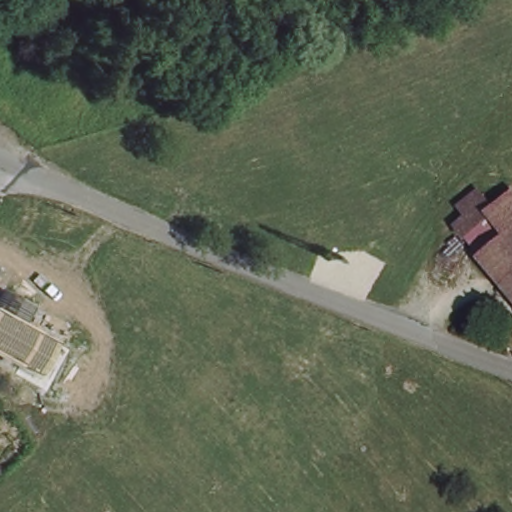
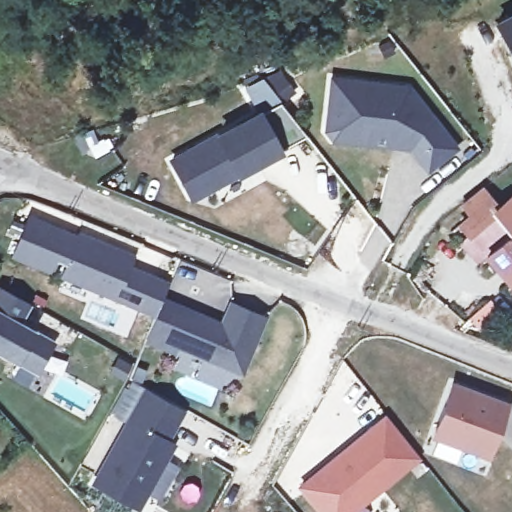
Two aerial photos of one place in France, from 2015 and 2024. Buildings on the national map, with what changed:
new [(512,15),(512,52),(496,24),(512,15)]
new [(409,150),(330,141),(322,131),(329,77),(408,84),(456,148),(426,171),(409,150)]
new [(279,149),(281,153),(236,177),(190,201),(167,160),(216,135),(258,111),(278,102),(304,134),(279,149)]
unchanged [(512,199),(512,280),(465,224),(474,216),(465,204),(484,190),(498,209),(512,199)]
new [(71,282),(58,277),(65,264),(56,261),(52,274),(10,257),(28,215),(137,259),(132,267),(168,281),(159,300),(152,315),(71,282)]
unchanged [(27,300),(17,318),(52,338),(35,370),(0,349),(0,284),(27,300)]
new [(199,317),(201,313),(222,322),(231,301),(261,313),(240,366),(175,340),(173,347),(144,335),(152,315),(159,300),(199,317)]
unchanged [(488,458),(431,437),(451,382),(508,402),(488,458)]
new [(181,412),(167,437),(173,441),(139,504),(94,481),(144,392),(181,412)]
new [(318,512),(296,484),(383,413),(420,458),(353,512),(318,512)]

